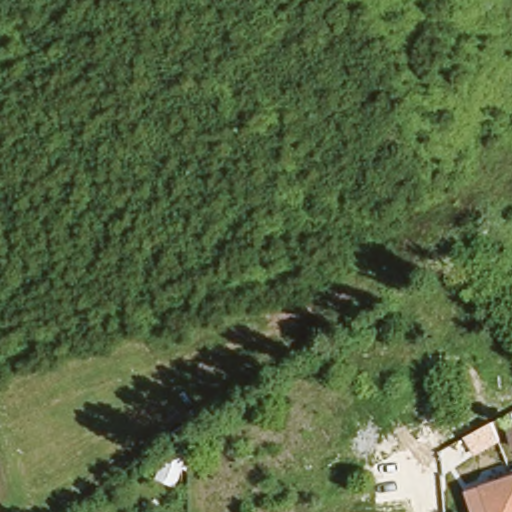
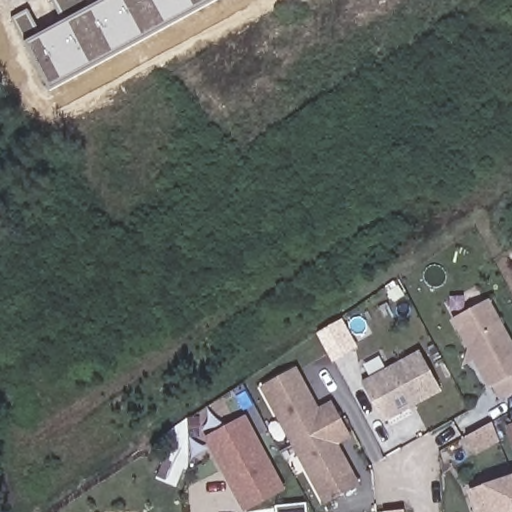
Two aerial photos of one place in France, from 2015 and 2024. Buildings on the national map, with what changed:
new [(26,42),(13,17),(28,9),(40,33),(64,22),(53,0),(91,0),(94,5),(104,0),(214,0),(48,88),(26,42)]
new [(489,299),(512,341),(512,395),(500,401),(493,386),(490,388),(474,361),(464,366),(468,350),(451,319),(489,299)]
new [(384,421),(361,381),(419,351),(441,392),(384,421)]
new [(352,438),(338,445),(361,485),(324,504),(260,387),(296,367),(318,408),(332,401),(352,438)]
new [(245,512),(203,437),(245,413),(286,488),(245,512)]
unchanged [(512,419),(512,435),(507,420),(512,419)]
unchanged [(467,491),(481,486),(480,483),(512,474),(512,512),(474,512),(467,491)]

